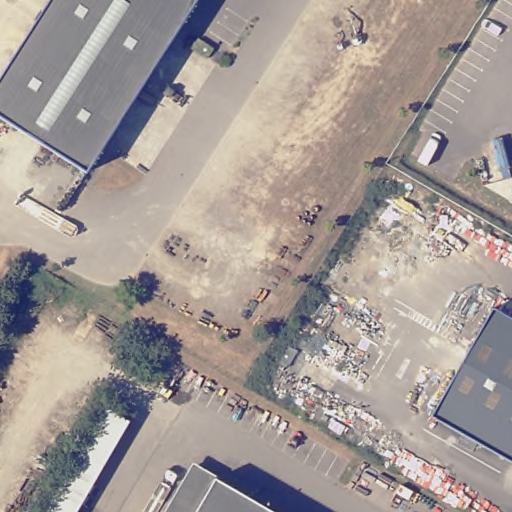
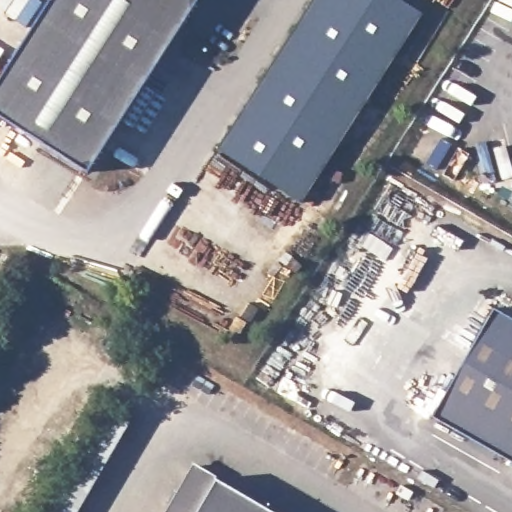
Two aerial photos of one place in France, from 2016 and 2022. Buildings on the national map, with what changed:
unchanged [(0,113),(0,71),(45,0),(193,0),(86,169),(0,113)]
new [(417,21),(302,203),(217,149),(313,0),(400,0),(422,14),(417,21)]
new [(215,157),(292,206),(279,225),(202,177),(215,157)]
unchanged [(512,191),(512,203),(507,201),(512,191)]
unchanged [(491,307),(512,319),(512,464),(428,415),(491,307)]
unchanged [(102,411),(126,425),(74,512),(42,512),(102,411)]
unchanged [(195,464),(277,512),(166,512),(195,464)]

